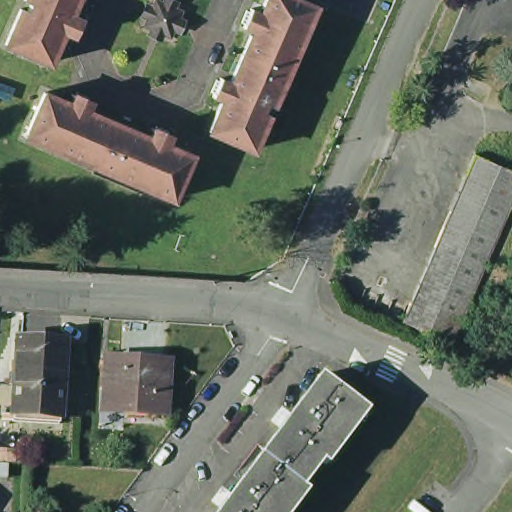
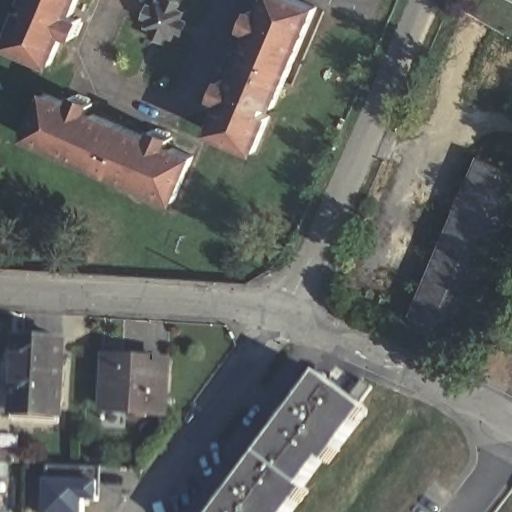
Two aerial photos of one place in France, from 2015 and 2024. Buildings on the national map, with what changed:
unchanged [(59,27),(44,61),(2,42),(17,9),(22,11),(26,1),(23,0),(70,0),(64,14),(72,17),(67,30),(59,27)]
unchanged [(230,79),(250,32),(252,33),(265,5),(262,4),(264,0),(298,0),(315,7),(274,102),(271,100),(267,111),(270,113),(255,147),(209,126),(224,93),(215,88),(220,76),(230,79)]
unchanged [(92,114),(137,134),(135,141),(164,154),(167,147),(185,155),(166,198),(22,136),(41,92),(61,101),(59,107),(64,109),(70,97),(88,105),(83,118),(89,120),(92,114)]
unchanged [(512,168),(512,217),(456,341),(408,319),(482,155),(512,168)]
unchanged [(57,421),(10,419),(15,346),(62,348),(57,421)]
unchanged [(110,362),(170,365),(168,412),(107,409),(110,362)]
unchanged [(314,382),(357,414),(349,425),(354,429),(332,458),(327,455),(319,466),(324,470),(304,497),(297,493),(288,506),(294,510),(292,512),(217,512),(314,382)]
unchanged [(19,449),(20,460),(0,459),(0,448),(19,449)]
unchanged [(8,463),(7,475),(0,475),(0,462),(8,463)]
new [(104,465),(103,503),(85,503),(86,512),(39,512),(40,466),(104,465)]

